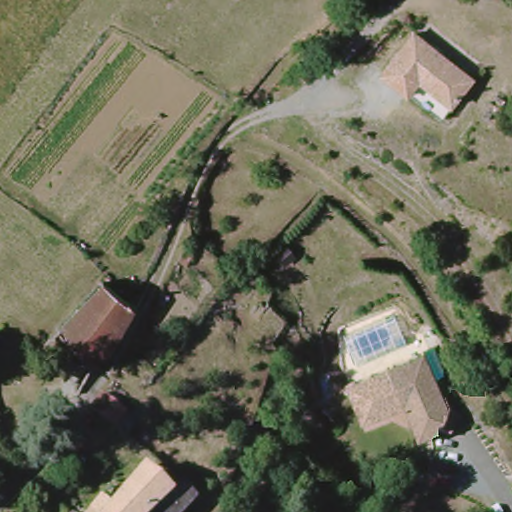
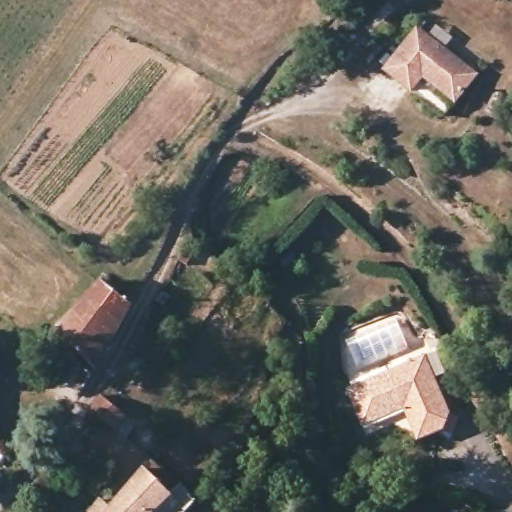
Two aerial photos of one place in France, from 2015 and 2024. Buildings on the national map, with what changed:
unchanged [(418,22),(484,71),(460,101),(425,77),(416,92),(383,71),(418,22)]
unchanged [(86,379),(74,360),(61,327),(103,281),(126,304),(86,379)]
unchanged [(447,428),(438,423),(415,432),(408,412),(392,369),(424,356),(444,410),(453,414),(447,428)]
unchanged [(408,412),(359,433),(344,388),(392,369),(408,412)]
unchanged [(125,419),(113,431),(95,417),(89,411),(100,396),(125,419)]
unchanged [(108,512),(138,481),(162,506),(155,512),(108,512)]

